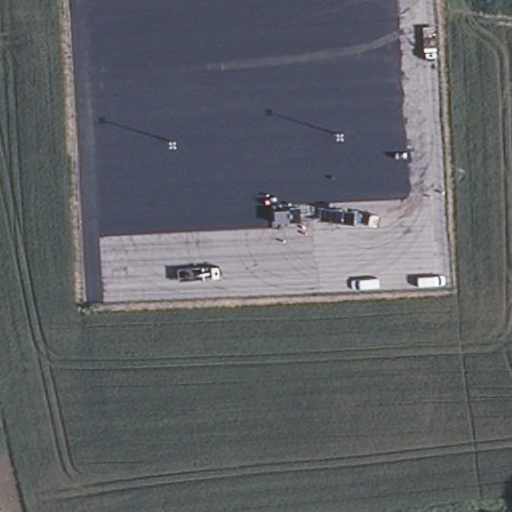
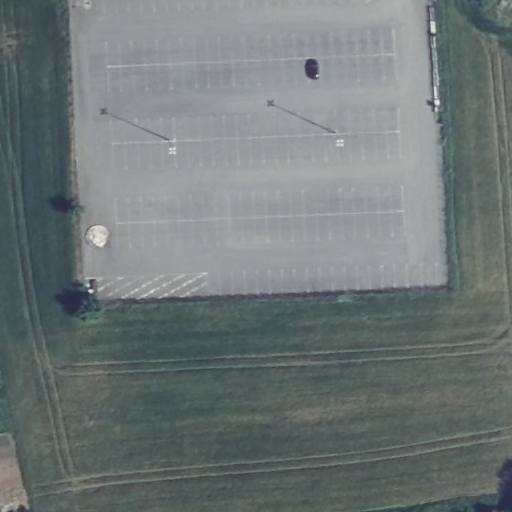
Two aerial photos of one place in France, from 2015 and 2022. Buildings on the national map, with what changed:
[]

